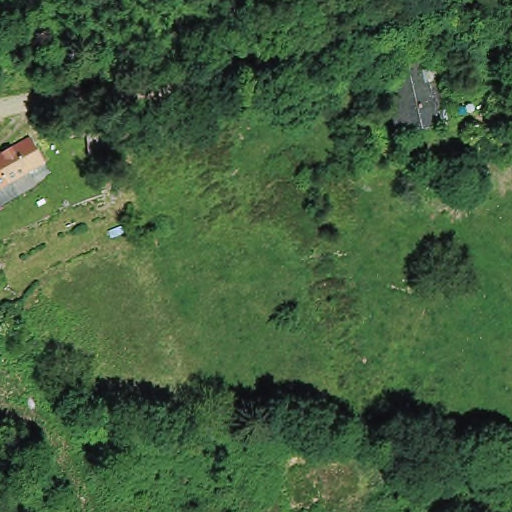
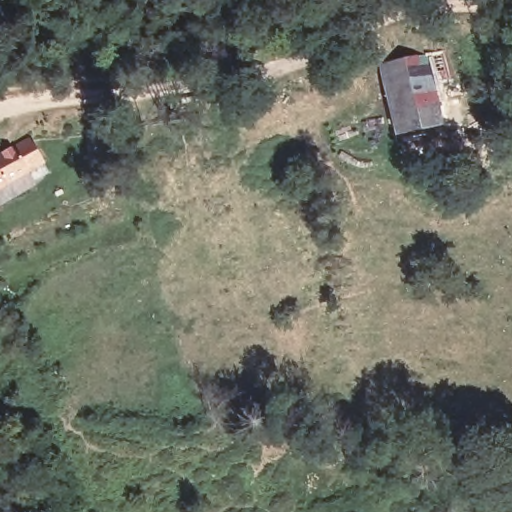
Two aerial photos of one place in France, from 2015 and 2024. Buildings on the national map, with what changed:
unchanged [(437,129),(393,138),(378,69),(423,59),(442,55),(450,91),(430,95),(434,112),(442,111),(444,122),(437,124),(437,129)]
unchanged [(450,91),(462,89),(463,96),(452,98),(450,91)]
unchanged [(12,196),(0,202),(0,153),(27,137),(40,163),(22,172),(30,186),(12,196)]

